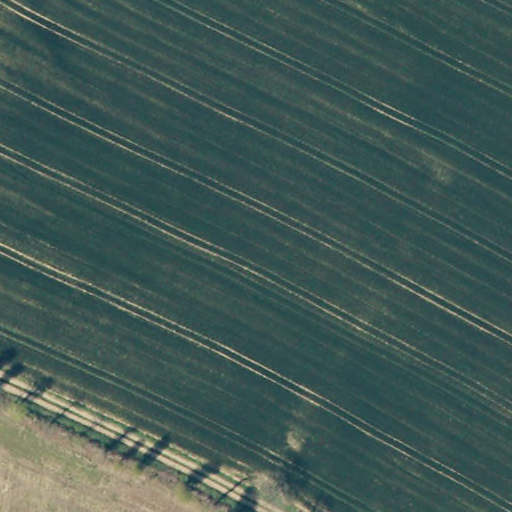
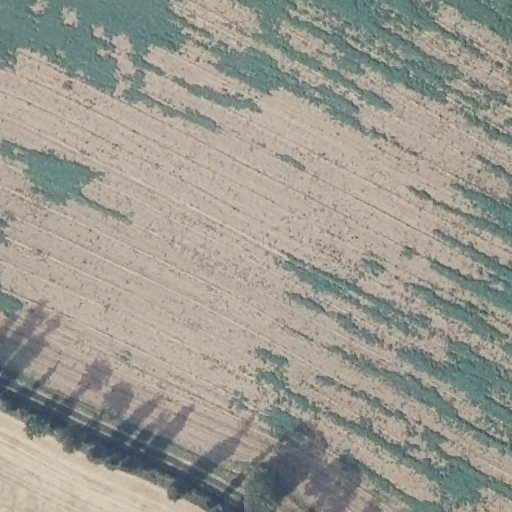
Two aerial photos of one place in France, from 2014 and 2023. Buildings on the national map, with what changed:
[]

